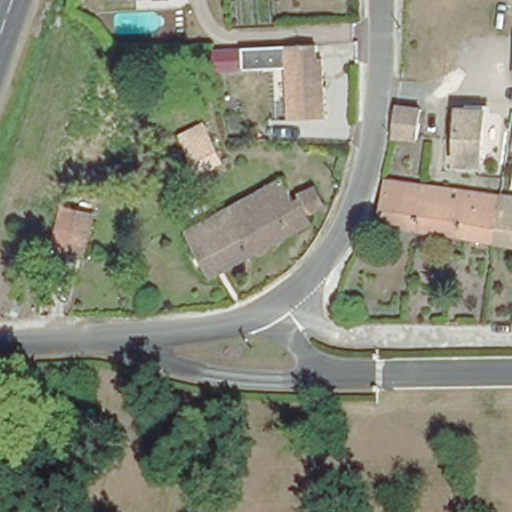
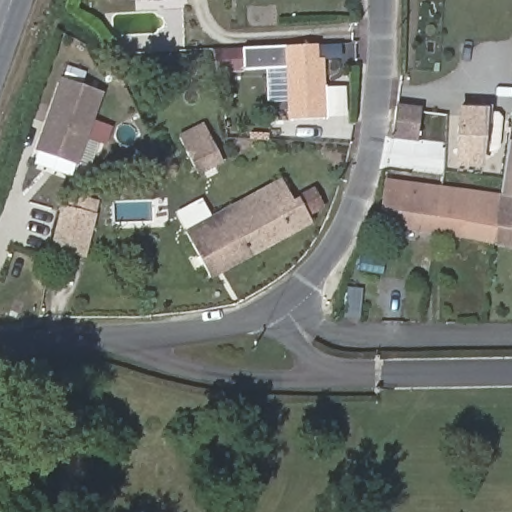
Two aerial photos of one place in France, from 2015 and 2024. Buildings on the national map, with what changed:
unchanged [(320,58),(324,117),(289,119),(286,67),(242,69),(241,47),(285,45),(314,44),(315,58),(320,58)]
new [(63,78),(105,92),(80,165),(36,149),(63,78)]
unchanged [(397,132),(401,104),(418,106),(415,135),(397,132)]
unchanged [(484,161),(461,160),(460,106),(485,107),(484,161)]
unchanged [(183,141),(207,128),(220,151),(195,164),(183,141)]
new [(511,140),(512,130),(512,199),(500,197),(511,140)]
unchanged [(253,254),(238,227),(229,210),(281,181),(293,202),(300,199),(297,194),(314,186),(326,206),(309,215),(312,222),(253,254)]
unchanged [(388,182),(425,187),(418,231),(381,225),(388,182)]
unchanged [(425,187),(500,197),(495,242),(418,231),(425,187)]
unchanged [(512,247),(495,245),(495,242),(500,197),(512,199),(512,247)]
unchanged [(229,210),(238,227),(253,254),(213,276),(188,232),(218,215),(212,204),(223,199),(229,210)]
unchanged [(87,257),(54,251),(61,211),(95,217),(87,257)]

